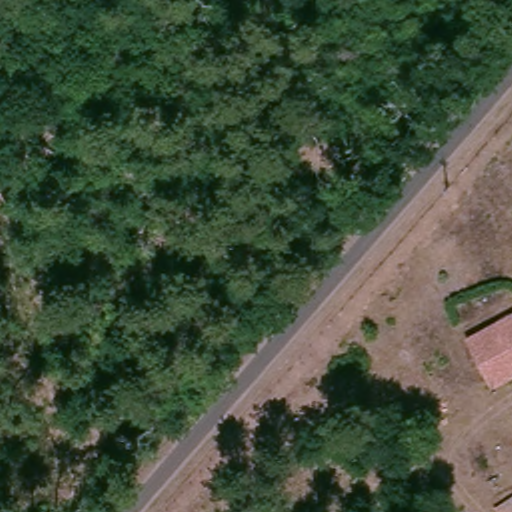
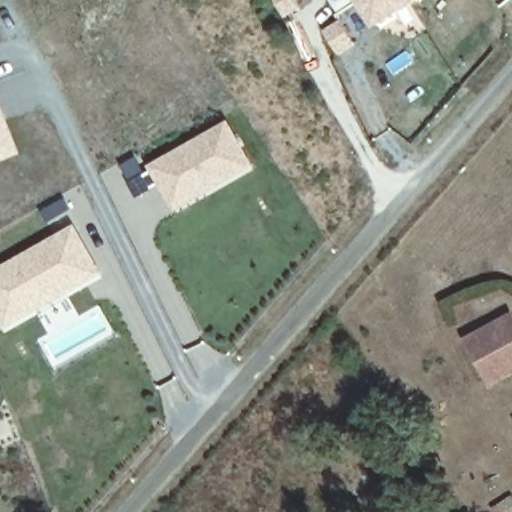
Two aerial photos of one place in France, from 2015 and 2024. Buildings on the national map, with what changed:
new [(358,0),(424,0),(377,30),(358,0)]
new [(21,154),(0,163),(0,101),(21,154)]
new [(148,166),(229,121),(254,166),(173,212),(148,166)]
new [(6,328),(0,318),(0,269),(75,226),(102,274),(6,328)]
unchanged [(465,337),(512,311),(512,378),(491,389),(465,337)]
new [(44,344),(98,314),(107,329),(54,361),(44,344)]
unchanged [(512,495),(512,508),(503,512),(497,512),(492,503),(511,493),(512,495)]

